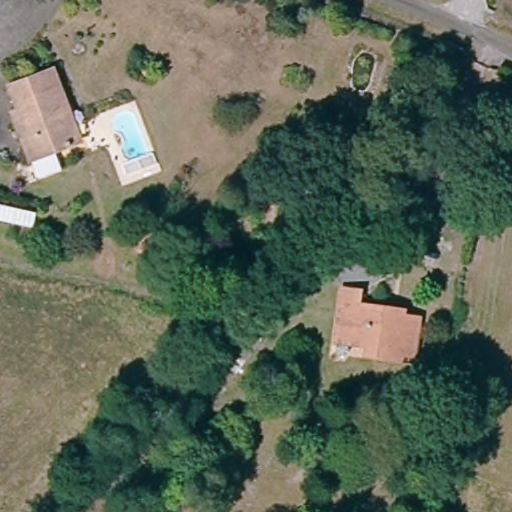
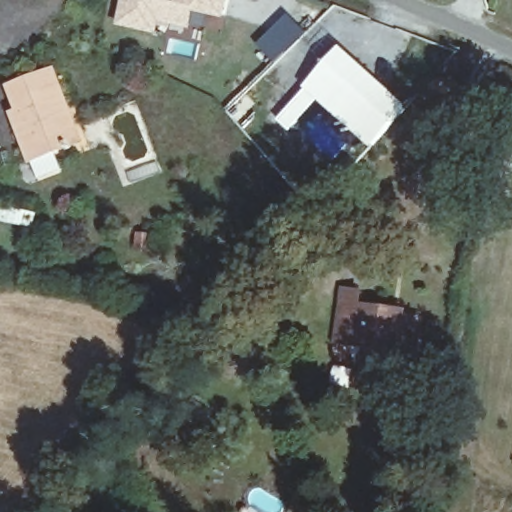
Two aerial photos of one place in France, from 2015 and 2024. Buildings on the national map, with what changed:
new [(194,12),(190,29),(159,21),(156,35),(116,27),(122,0),(227,0),(223,18),(194,12)]
new [(408,107),(371,149),(318,100),(289,130),(276,120),(304,86),(339,47),(408,107)]
unchanged [(23,120),(9,85),(51,69),(64,103),(56,106),(69,140),(53,147),(59,165),(35,175),(15,122),(23,120)]
unchanged [(150,240),(149,250),(136,249),(137,239),(150,240)]
unchanged [(361,356),(362,351),(334,343),(338,288),(359,291),(358,305),(404,308),(404,316),(424,319),(416,362),(361,356)]
unchanged [(245,331),(260,343),(231,380),(217,368),(245,331)]

